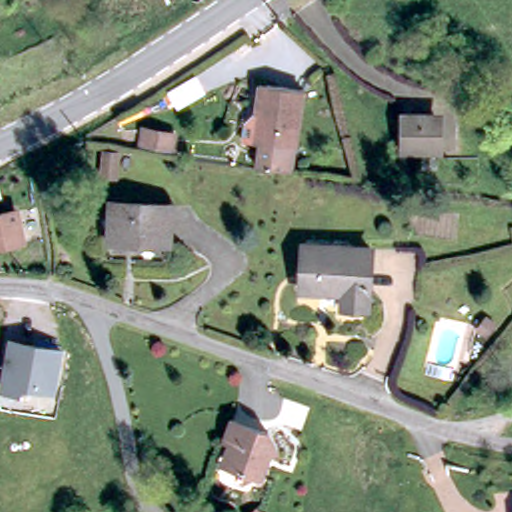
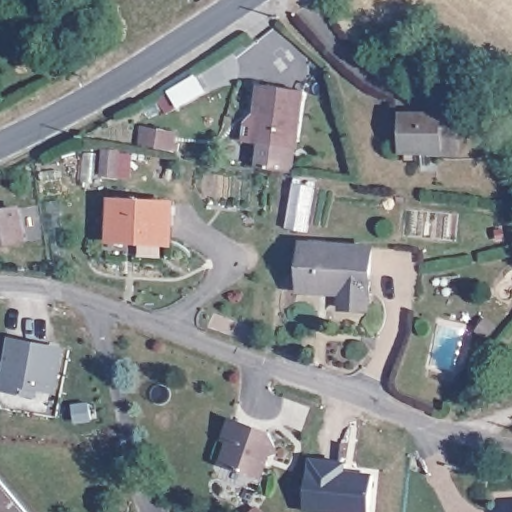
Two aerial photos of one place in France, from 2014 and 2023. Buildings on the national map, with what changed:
new [(168,92),(167,90),(196,73),(207,92),(178,110),(176,108),(165,114),(157,101),(168,92)]
unchanged [(265,146),(255,144),(263,89),(307,95),(299,151),(296,150),(292,175),(261,170),(265,146)]
unchanged [(167,142),(136,137),(138,119),(170,125),(167,142)]
unchanged [(440,150),(407,151),(406,123),(440,123),(440,150)]
unchanged [(111,243),(116,203),(171,210),(167,249),(111,243)]
unchanged [(20,209),(27,239),(0,244),(0,212),(20,209)]
unchanged [(345,312),(346,296),(305,293),(308,248),(375,254),(369,314),(345,312)]
unchanged [(22,389),(21,397),(0,391),(0,387),(8,336),(65,348),(56,395),(22,389)]
unchanged [(271,434),(282,448),(271,452),(265,477),(237,469),(233,458),(236,445),(226,443),(231,426),(271,434)]
new [(348,466),(347,475),(376,480),(370,512),(317,512),(304,510),(313,460),(348,466)]
new [(26,512),(0,512),(0,484),(26,512)]
new [(251,512),(257,504),(267,512),(251,512)]

